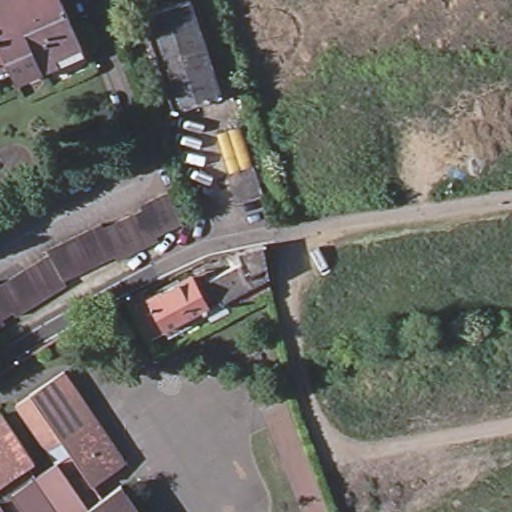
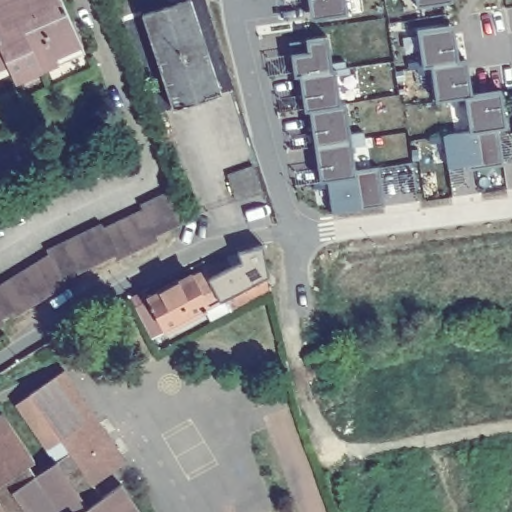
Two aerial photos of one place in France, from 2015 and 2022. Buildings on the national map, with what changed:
unchanged [(84,44),(60,54),(64,64),(18,81),(13,66),(0,69),(0,0),(64,0),(84,44)]
unchanged [(144,13),(183,0),(193,0),(224,94),(176,107),(144,13)]
new [(348,14),(318,16),(316,5),(309,6),(309,0),(345,0),(348,14)]
new [(414,0),(444,0),(444,1),(415,5),(414,0)]
new [(446,27),(447,39),(456,37),(461,73),(468,71),(471,94),(501,91),(504,114),(498,115),(504,165),(479,169),(479,164),(448,168),(443,135),(470,131),(464,98),(435,101),(431,67),(422,67),(417,30),(446,27)]
new [(328,37),(333,69),(336,69),(341,104),(346,104),(356,170),(379,167),(384,206),(331,213),(327,182),(321,183),(317,157),(324,155),(322,145),(316,145),(311,121),(318,120),(316,109),(305,111),(301,87),(309,85),(309,75),(294,76),(291,55),(306,53),(305,40),(328,37)]
unchanged [(240,125),(263,193),(241,201),(216,135),(240,125)]
unchanged [(40,252),(167,189),(184,223),(71,273),(0,323),(0,281),(40,252)]
unchanged [(211,277),(242,263),(241,250),(264,246),(271,275),(223,299),(211,277)]
unchanged [(166,329),(151,301),(163,294),(157,284),(196,272),(212,304),(166,329)]
unchanged [(3,412),(42,469),(56,460),(14,401),(68,367),(129,458),(113,471),(143,512),(0,512),(0,414),(3,412)]

